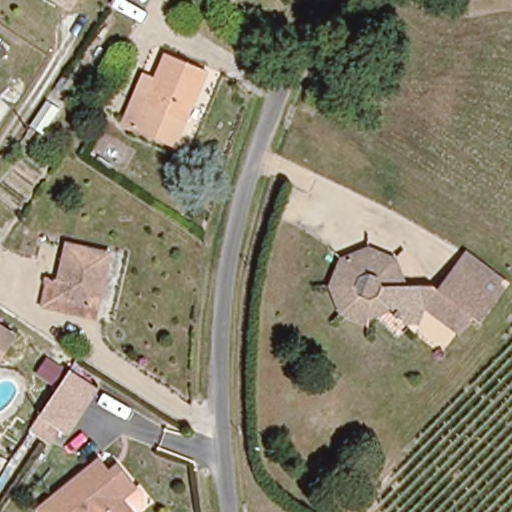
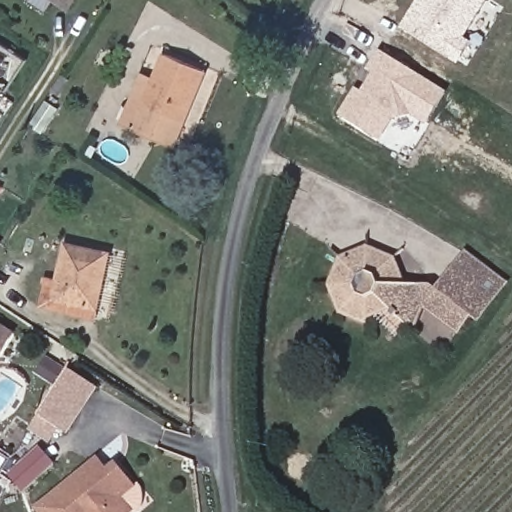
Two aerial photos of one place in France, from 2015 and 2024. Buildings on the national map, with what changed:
unchanged [(59,0),(77,0),(71,8),(59,0)]
new [(420,0),(489,0),(465,38),(471,41),(458,64),(401,29),(420,0)]
new [(411,115),(393,120),(380,141),(338,115),(356,88),(362,91),(373,74),(367,69),(380,50),(448,90),(427,126),(411,115)]
unchanged [(147,74),(159,79),(170,54),(208,70),(176,146),(138,129),(126,124),(147,74)]
unchanged [(70,244),(111,253),(97,315),(46,304),(51,284),(47,283),(49,277),(62,279),(70,244)]
unchanged [(464,308),(451,326),(418,303),(409,324),(387,304),(362,315),(334,306),(324,280),(334,254),(361,244),(386,254),(398,283),(433,283),(458,249),(497,279),(472,314),(464,308)]
unchanged [(16,335),(0,361),(0,325),(16,335)]
unchanged [(65,374),(92,393),(60,438),(34,419),(33,419),(64,374),(65,374)]
unchanged [(94,469),(99,466),(109,478),(118,471),(136,493),(122,504),(129,512),(43,512),(94,469)]

